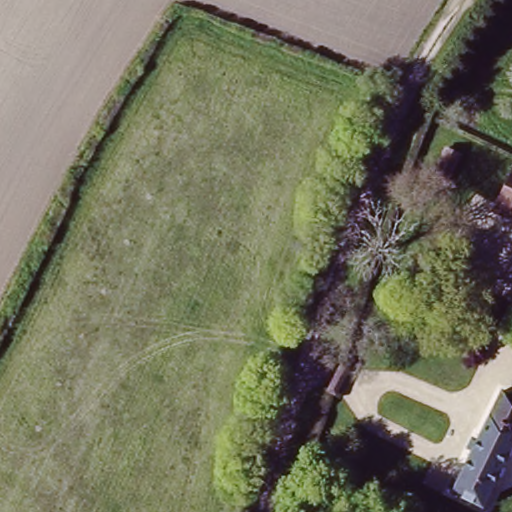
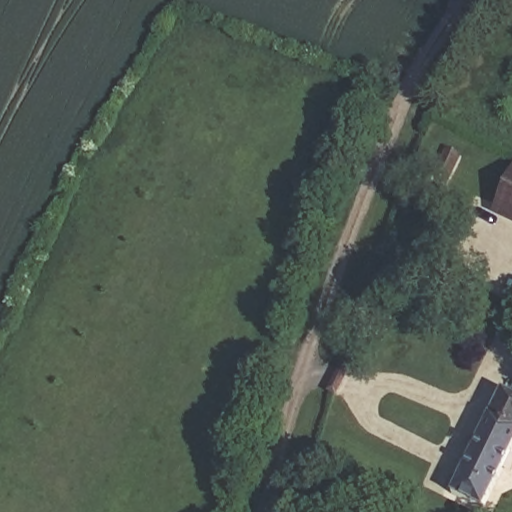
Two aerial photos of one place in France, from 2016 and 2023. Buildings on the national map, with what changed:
unchanged [(512,173),(512,215),(495,207),(512,173)]
unchanged [(512,441),(489,489),(479,510),(468,505),(452,496),(453,494),(462,477),(473,453),(485,428),(503,388),(512,392),(512,441)]

